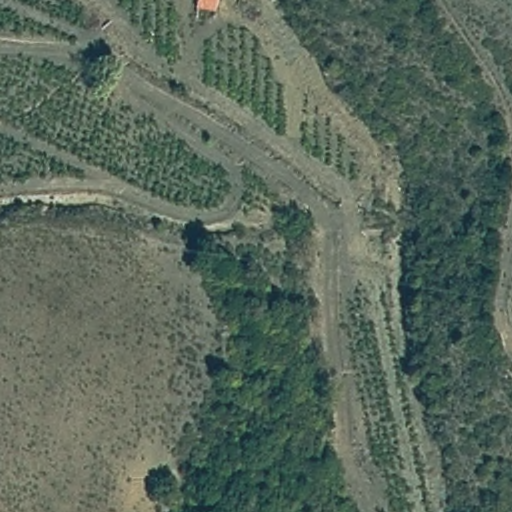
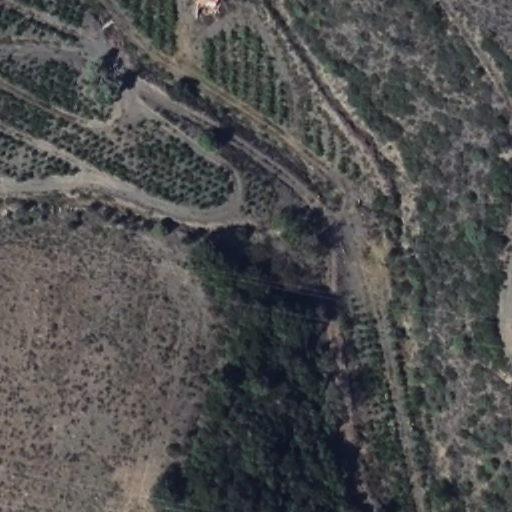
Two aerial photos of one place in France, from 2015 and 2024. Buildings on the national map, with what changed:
unchanged [(199,4),(199,0),(218,0),(217,8),(199,4)]

